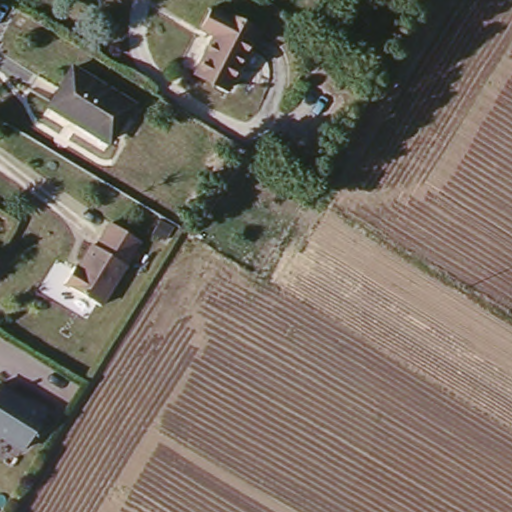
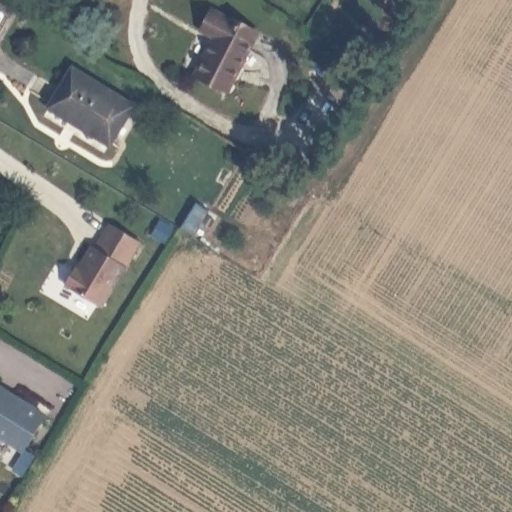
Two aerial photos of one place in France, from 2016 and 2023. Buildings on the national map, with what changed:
unchanged [(220,35),(206,29),(215,9),(260,30),(231,89),(200,73),(220,35)]
unchanged [(69,70),(130,103),(111,137),(72,115),(70,119),(49,108),(69,70)]
unchanged [(67,282),(109,220),(145,240),(105,304),(67,282)]
unchanged [(0,435),(0,384),(50,413),(26,450),(0,435)]

